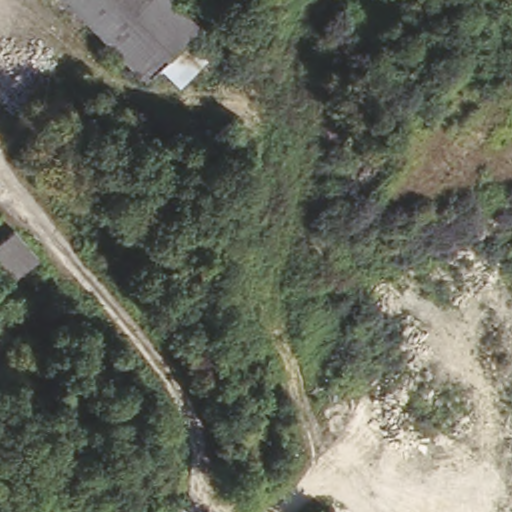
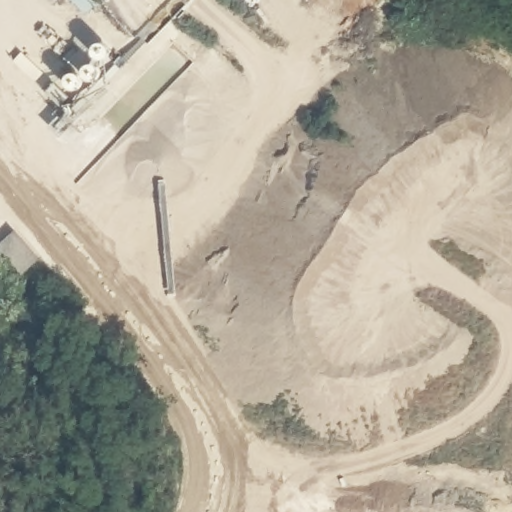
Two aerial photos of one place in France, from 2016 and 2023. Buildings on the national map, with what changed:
demolished [(178,0),(202,24),(147,81),(70,0),(178,0)]
unchanged [(11,280),(0,269),(0,239),(14,226),(37,255),(11,280)]

